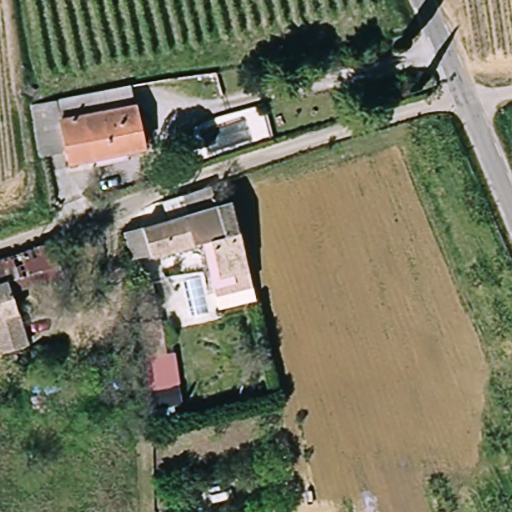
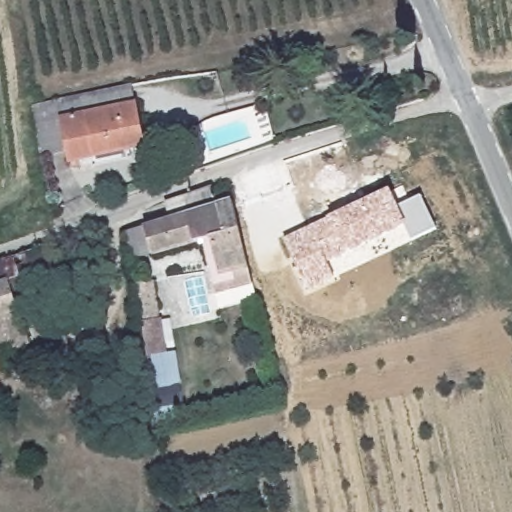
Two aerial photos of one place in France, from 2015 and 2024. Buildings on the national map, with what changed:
unchanged [(144,151),(69,165),(61,120),(134,106),(144,151)]
new [(390,190),(399,209),(422,197),(437,229),(412,240),(405,227),(349,253),(328,264),(335,280),(308,293),(284,240),(328,219),(390,190)]
unchanged [(216,295),(211,276),(203,245),(154,258),(146,231),(193,217),(188,199),(213,191),(218,208),(234,204),(251,269),(256,287),(216,295)]
unchanged [(65,276),(38,285),(16,291),(13,282),(0,286),(0,260),(29,251),(54,243),(65,276)]
unchanged [(16,291),(23,313),(0,320),(0,286),(13,282),(16,291)]
unchanged [(158,328),(141,331),(134,305),(152,302),(158,328)]
unchanged [(0,344),(0,320),(23,313),(33,346),(3,355),(0,344)]

